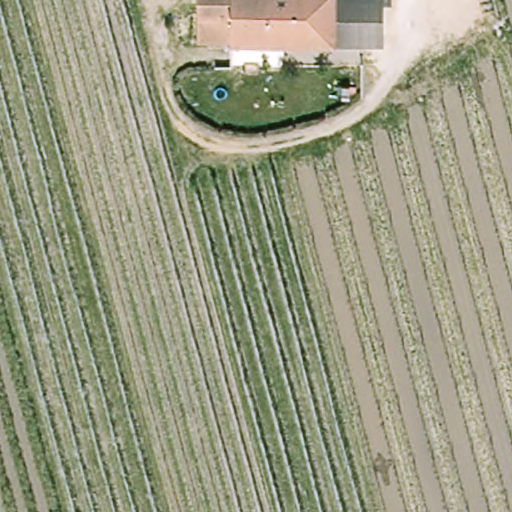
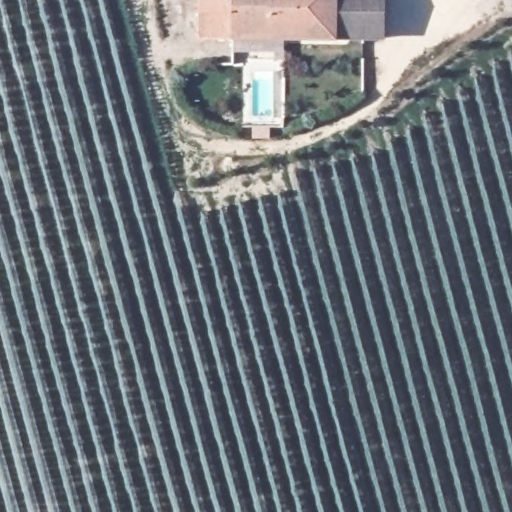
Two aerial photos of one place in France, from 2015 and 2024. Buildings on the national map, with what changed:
unchanged [(206,40),(206,0),(232,0),(234,39),(206,40)]
unchanged [(234,39),(232,0),(336,0),(336,37),(234,39)]
unchanged [(336,37),(336,0),(386,0),(387,38),(336,37)]

